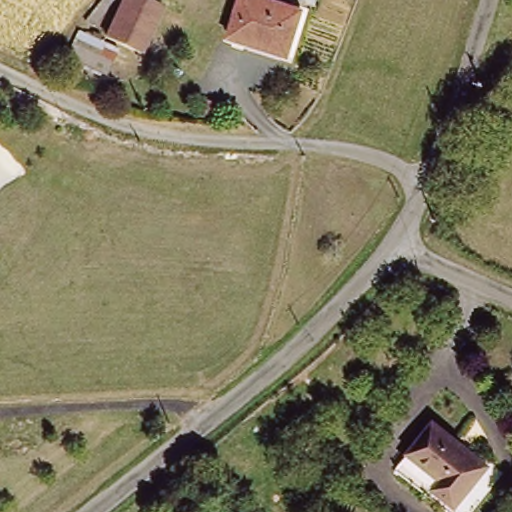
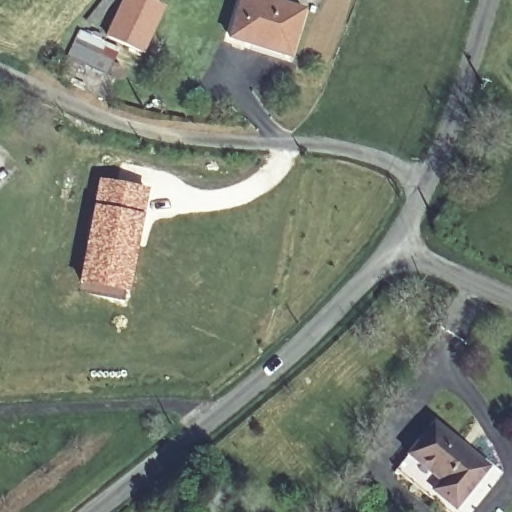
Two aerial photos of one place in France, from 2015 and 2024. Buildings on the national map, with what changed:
unchanged [(137,0),(166,0),(174,4),(152,50),(120,35),(137,0)]
unchanged [(282,0),(317,15),(299,57),(242,34),(256,0),(282,0)]
unchanged [(86,64),(79,81),(68,76),(85,41),(89,30),(127,49),(122,59),(114,77),(86,64)]
new [(130,294),(78,283),(100,180),(150,190),(130,294)]
unchanged [(447,485),(455,475),(422,448),(448,418),(502,463),(470,503),(447,485)]
unchanged [(464,509),(410,464),(422,448),(455,475),(447,485),(470,503),(464,509)]

